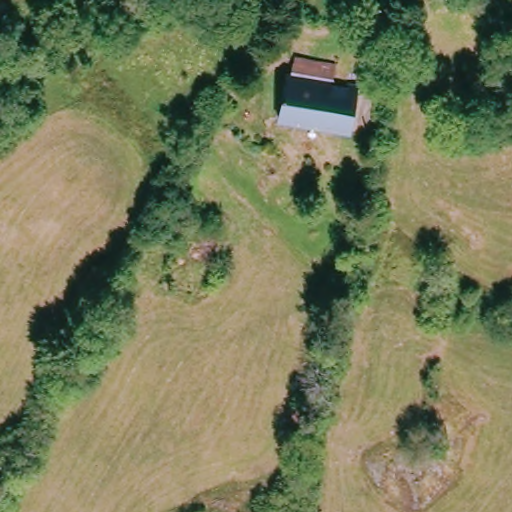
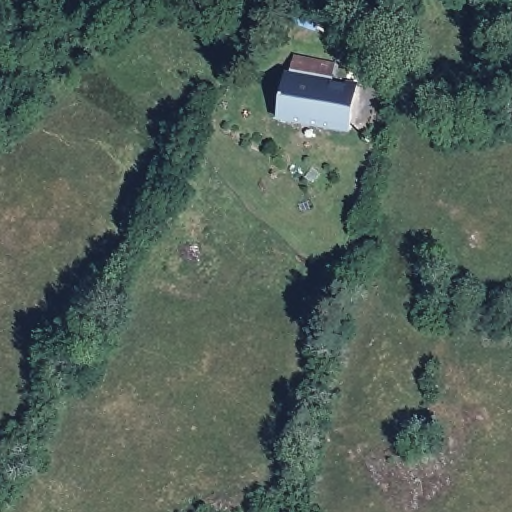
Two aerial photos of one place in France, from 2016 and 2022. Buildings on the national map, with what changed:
unchanged [(291,75),(297,76),(299,61),(339,69),(336,84),(351,86),(353,74),(365,76),(354,135),(282,122),(291,75)]

